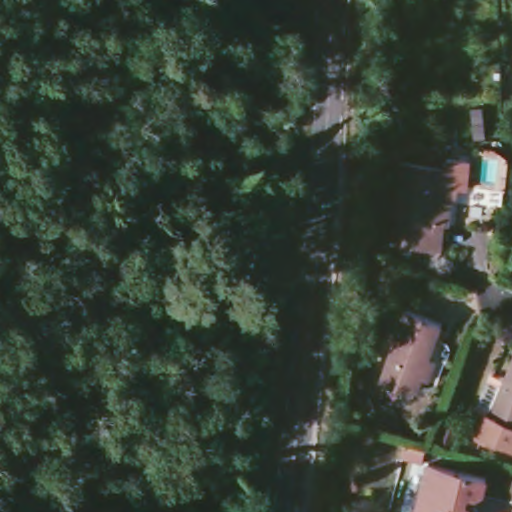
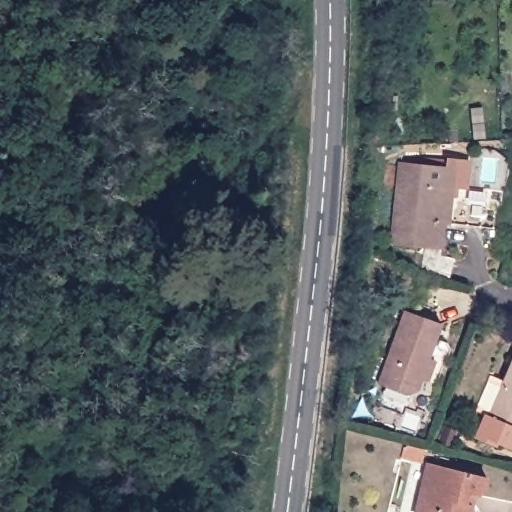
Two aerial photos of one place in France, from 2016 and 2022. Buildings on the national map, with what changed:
unchanged [(397,162),(443,167),(444,159),(466,161),(463,189),(453,188),(452,197),(447,196),(444,225),(439,224),(437,249),(436,255),(450,258),(444,278),(418,270),(421,247),(388,244),(397,162)]
unchanged [(442,318),(437,333),(448,337),(452,343),(447,358),(437,355),(429,376),(423,373),(419,384),(408,389),(379,379),(406,306),(442,318)]
unchanged [(497,446),(477,437),(487,415),(491,417),(512,365),(512,448),(498,442),(497,446)]
unchanged [(418,502),(429,457),(487,472),(484,486),(477,491),(468,488),(466,497),(469,498),(473,506),(471,512),(420,512),(416,511),(418,502)]

